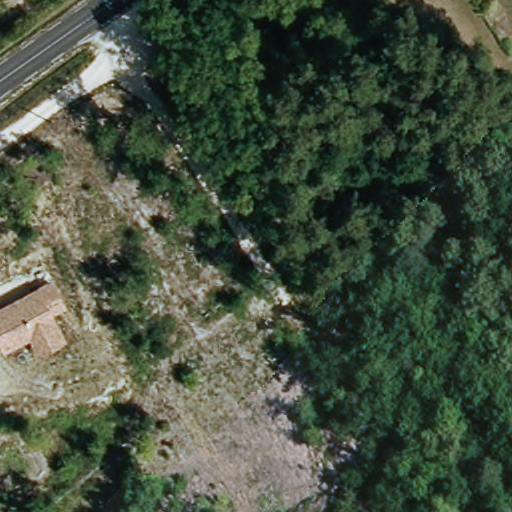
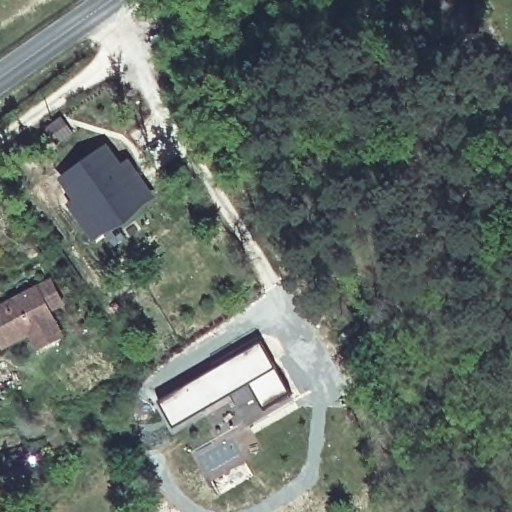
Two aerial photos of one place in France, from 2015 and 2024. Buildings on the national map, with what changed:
new [(102,155),(135,200),(95,229),(62,183),(102,155)]
unchanged [(65,303),(52,310),(66,335),(37,351),(28,334),(2,349),(0,344),(0,303),(50,276),(65,303)]
new [(266,342),(297,395),(270,412),(254,386),(180,430),(163,402),(266,342)]

